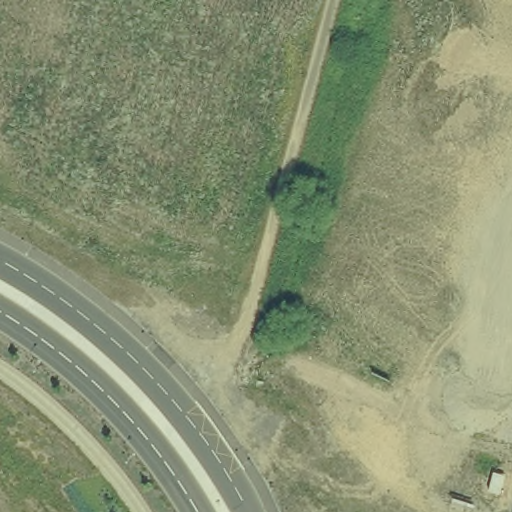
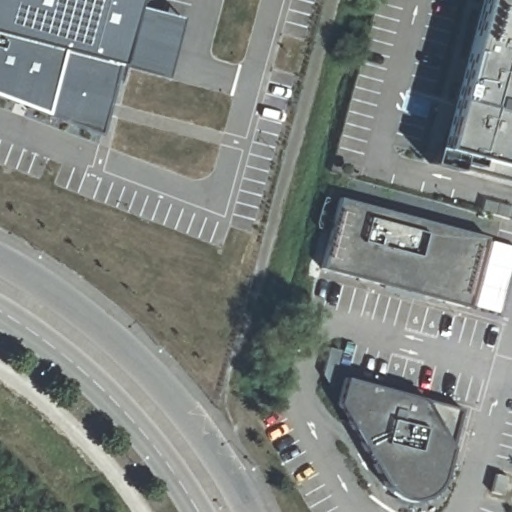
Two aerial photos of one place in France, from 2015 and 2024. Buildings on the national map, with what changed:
new [(0,0),(140,0),(122,70),(0,35),(0,0)]
new [(481,0),(512,0),(512,142),(505,167),(459,154),(456,171),(428,163),(432,147),(442,149),(481,0)]
new [(184,20),(170,80),(120,70),(135,9),(184,20)]
new [(103,135),(46,117),(0,101),(0,36),(120,70),(103,135)]
new [(341,195),(489,235),(470,306),(321,265),(341,195)]
new [(345,377),(462,408),(442,480),(438,487),(431,495),(425,497),(420,500),(413,500),(405,500),(398,497),(393,493),(388,490),(385,485),(337,403),(345,377)]

